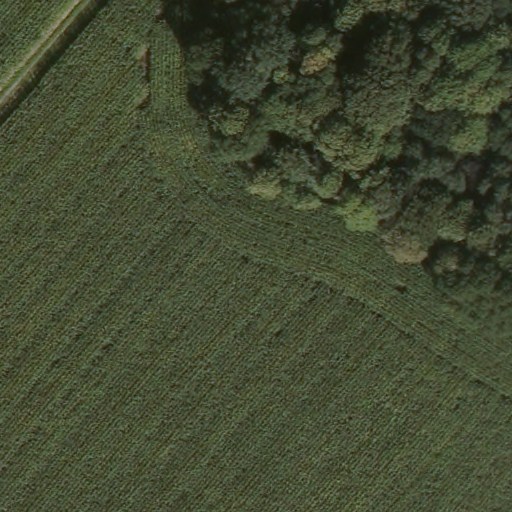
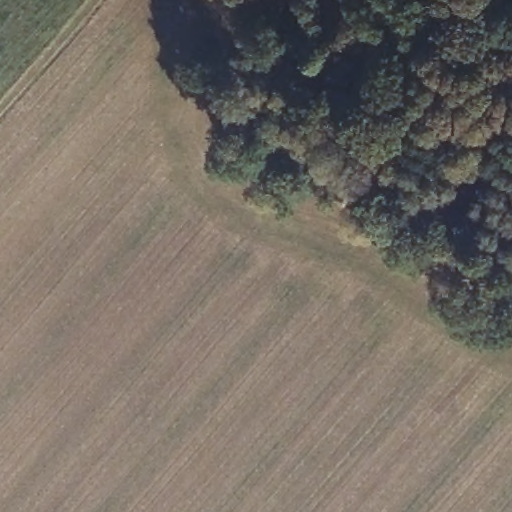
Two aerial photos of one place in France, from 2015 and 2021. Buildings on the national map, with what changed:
[]

